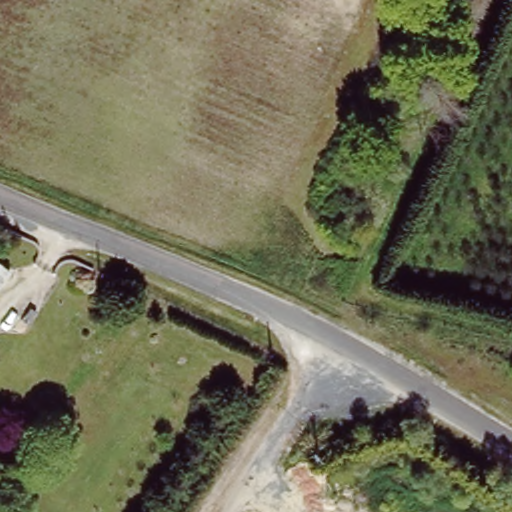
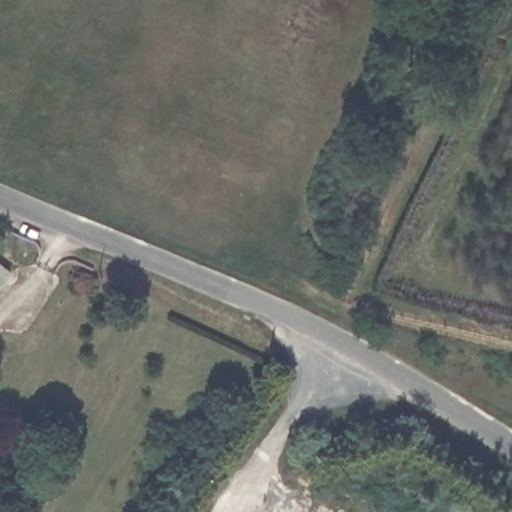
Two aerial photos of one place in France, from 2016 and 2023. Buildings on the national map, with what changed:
unchanged [(0,285),(0,260),(12,270),(0,285)]

